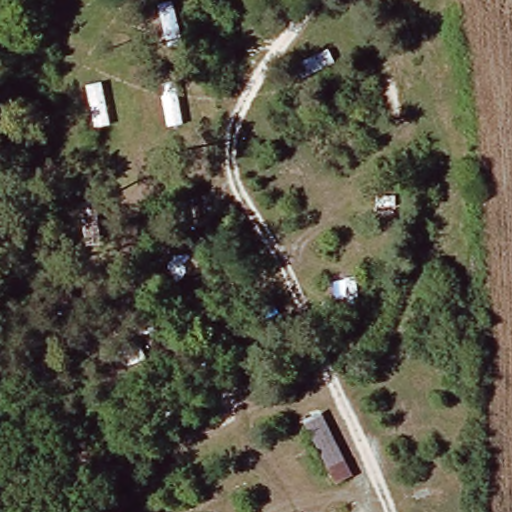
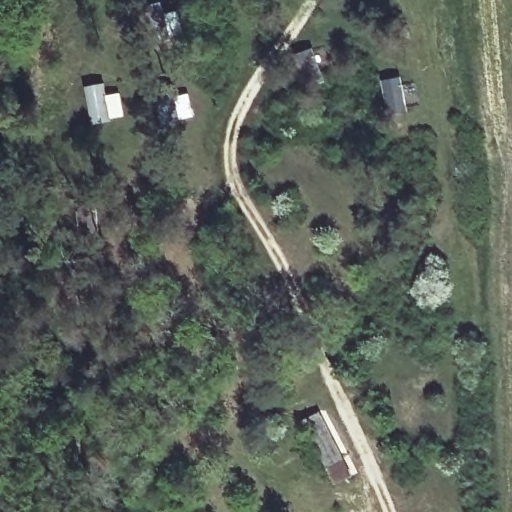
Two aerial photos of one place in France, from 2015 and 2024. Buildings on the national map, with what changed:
unchanged [(350,462),(335,469),(315,430),(329,422),(350,462)]

